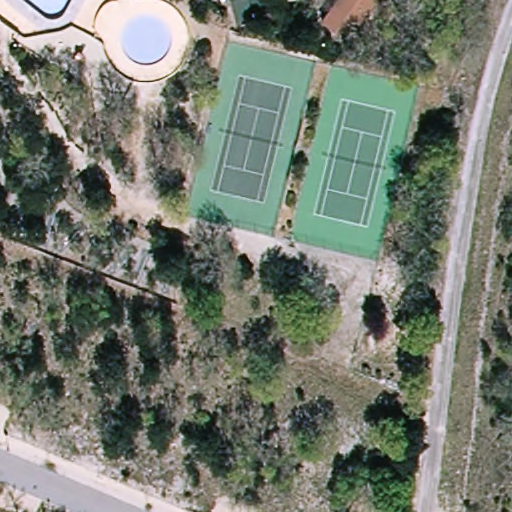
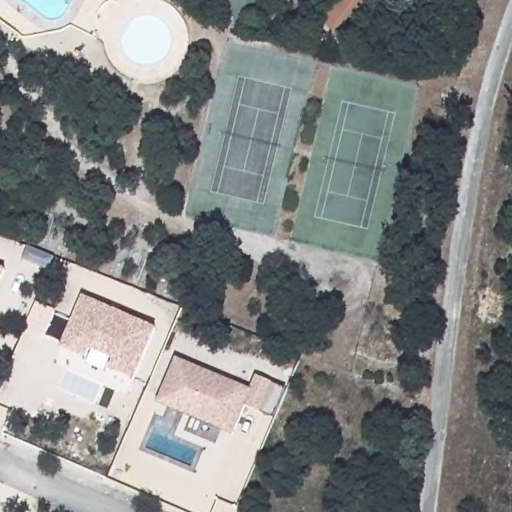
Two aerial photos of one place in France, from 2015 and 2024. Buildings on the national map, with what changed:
unchanged [(205,0),(215,0),(206,2),(205,0)]
unchanged [(263,5),(249,9),(253,24),(233,29),(225,0),(262,0),(263,5)]
unchanged [(328,0),(377,0),(344,44),(314,23),(328,0)]
new [(0,286),(0,266),(8,270),(0,286)]
new [(60,347),(83,296),(158,328),(136,380),(110,369),(113,360),(91,350),(86,360),(60,347)]
new [(286,391),(274,418),(246,406),(233,435),(156,402),(176,358),(251,390),(256,377),(286,391)]

